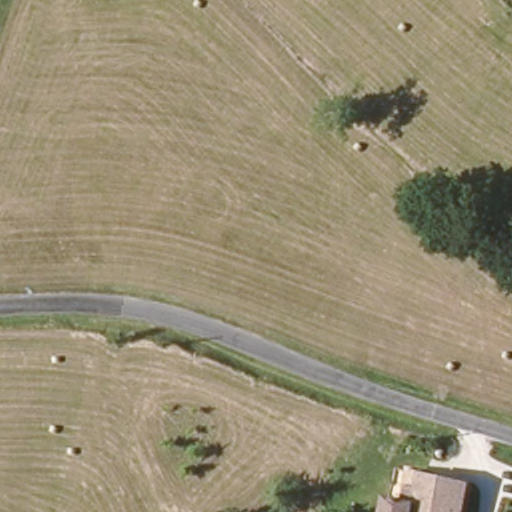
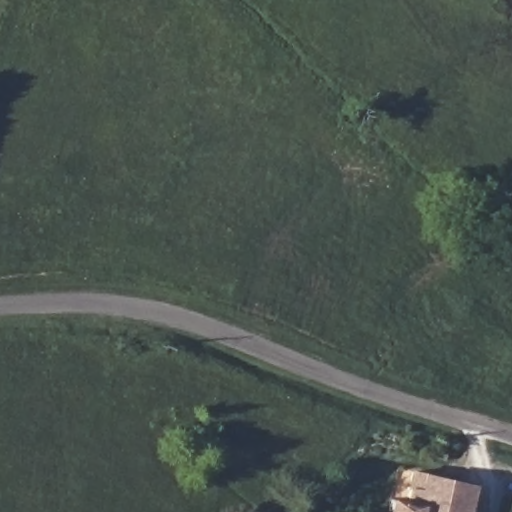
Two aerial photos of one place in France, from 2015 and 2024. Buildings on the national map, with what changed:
unchanged [(405,503),(413,471),(473,486),(467,512),(389,512),(392,501),(405,503)]

